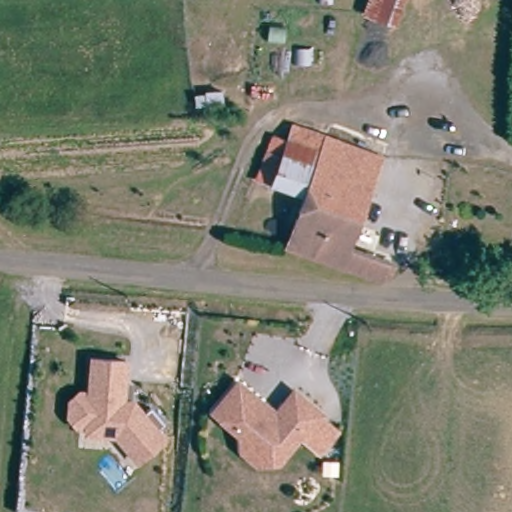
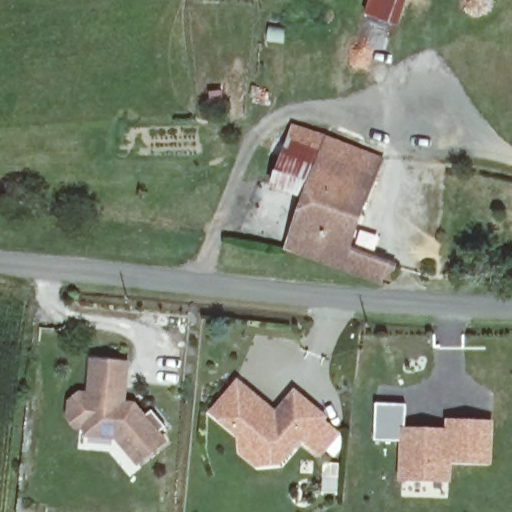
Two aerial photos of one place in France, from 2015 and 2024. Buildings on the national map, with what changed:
unchanged [(365,12),(369,0),(409,0),(399,26),(365,12)]
unchanged [(273,187),(293,134),(322,141),(305,199),(273,187)]
unchanged [(305,199),(322,141),(348,149),(379,159),(376,170),(351,251),(397,269),(395,285),(388,285),(287,250),(305,199)]
unchanged [(165,427),(157,434),(164,442),(152,451),(137,464),(116,437),(87,435),(85,435),(86,428),(76,427),(68,418),(69,402),(79,394),(89,395),(92,360),(116,363),(126,364),(122,401),(133,405),(143,417),(151,411),(152,412),(165,427)]
unchanged [(261,464),(245,450),(244,435),(217,411),(242,382),(280,415),(299,393),(328,418),(326,421),(342,435),(324,455),(308,440),(306,438),(283,463),(261,464)]
new [(406,429),(446,431),(446,421),(495,422),(493,466),(454,467),(452,485),(400,482),(401,442),(377,441),(377,406),(407,407),(406,429)]

